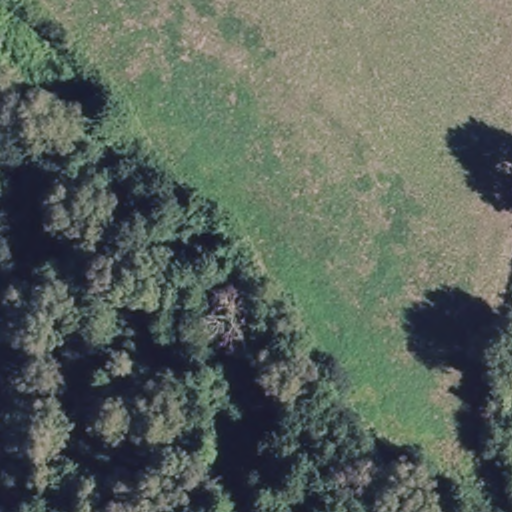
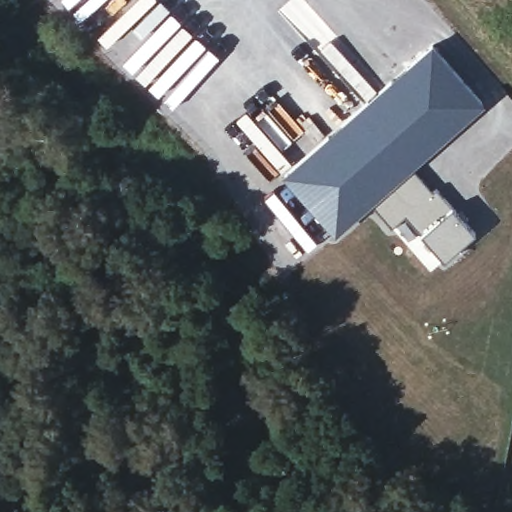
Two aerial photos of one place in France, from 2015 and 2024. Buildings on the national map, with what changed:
new [(311,146),(433,42),(460,70),(486,103),(438,144),(414,169),(373,205),(335,235),(307,205),(282,175),(311,146)]
new [(414,169),(453,205),(409,245),(373,205),(414,169)]
new [(453,205),(475,231),(431,271),(409,245),(453,205)]

